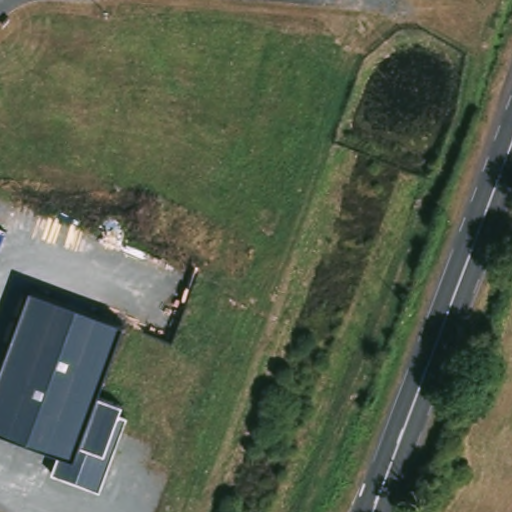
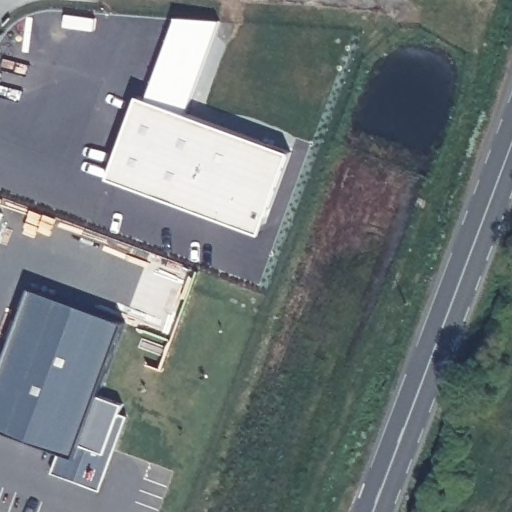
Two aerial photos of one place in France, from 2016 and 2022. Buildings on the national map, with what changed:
new [(139,96),(147,99),(177,18),(220,21),(186,113),(292,152),(262,234),(109,178),(139,96)]
unchanged [(124,405),(121,414),(128,416),(100,490),(53,472),(59,452),(0,431),(0,373),(32,288),(127,323),(100,396),(124,405)]

